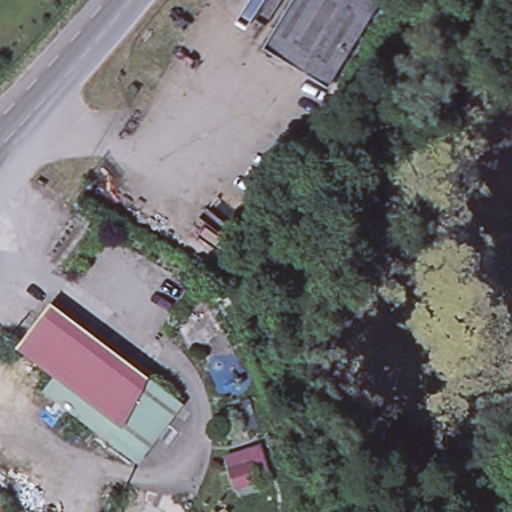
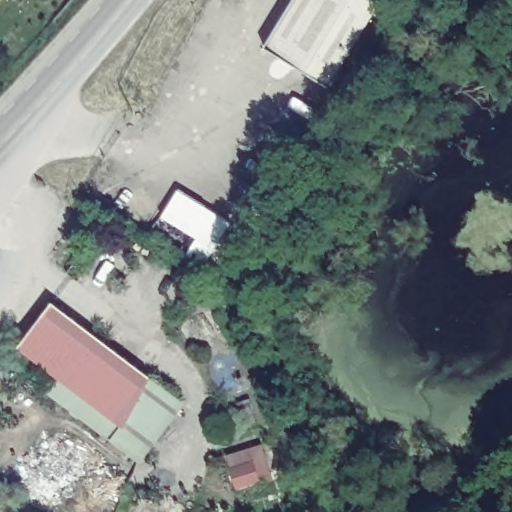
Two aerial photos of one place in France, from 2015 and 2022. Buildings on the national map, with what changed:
unchanged [(265,44),(290,0),(377,0),(331,82),(265,44)]
unchanged [(187,408),(141,466),(44,394),(58,376),(18,346),(52,300),(187,408)]
unchanged [(264,444),(276,479),(238,491),(225,455),(264,444)]

